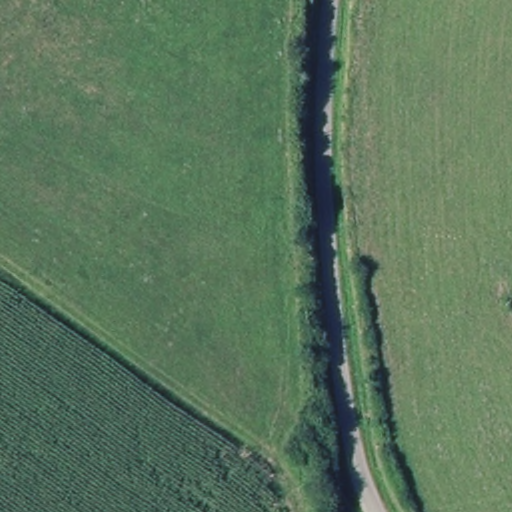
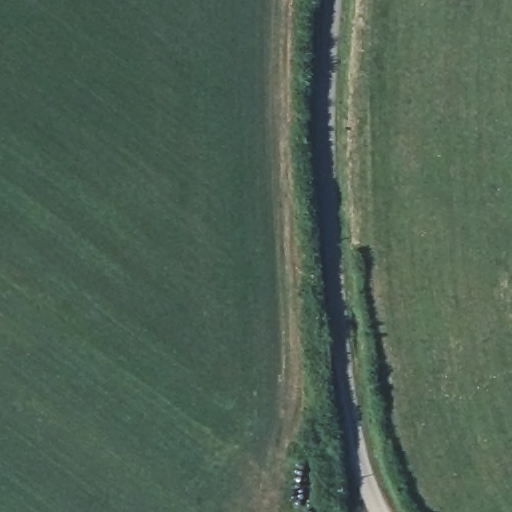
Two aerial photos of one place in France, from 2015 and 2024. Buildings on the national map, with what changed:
[]

